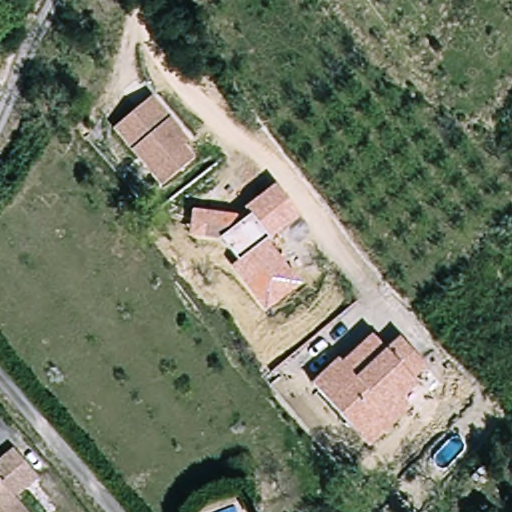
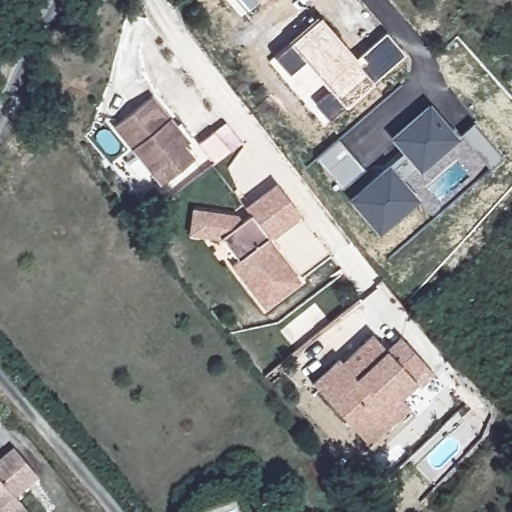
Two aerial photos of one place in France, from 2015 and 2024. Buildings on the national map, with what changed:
new [(258,1),(247,12),(237,0),(264,0),(260,4),(258,1)]
new [(290,43),(321,16),(356,58),(387,32),(406,54),(373,81),(375,84),(346,109),(344,106),(329,119),(314,103),(330,90),(306,60),(290,74),(275,55),(290,43)]
unchanged [(165,182),(117,125),(153,94),(177,123),(191,139),(186,143),(196,155),(165,182)]
new [(430,103),(459,137),(422,170),(415,163),(400,175),(418,198),(381,233),(352,199),(405,154),(392,136),(430,103)]
new [(200,144),(216,131),(232,151),(216,164),(200,144)]
new [(339,139),(366,170),(343,190),(316,158),(339,139)]
unchanged [(302,215),(270,239),(303,286),(268,312),(232,267),(239,263),(224,242),(190,238),(193,210),(248,215),(244,208),(277,184),(302,215)]
unchanged [(347,354),(350,358),(382,332),(396,348),(410,335),(434,364),(420,376),(424,381),(408,395),(416,405),(374,441),(320,378),(347,354)]
unchanged [(17,443),(40,471),(17,491),(35,512),(0,512),(0,457),(17,443)]

